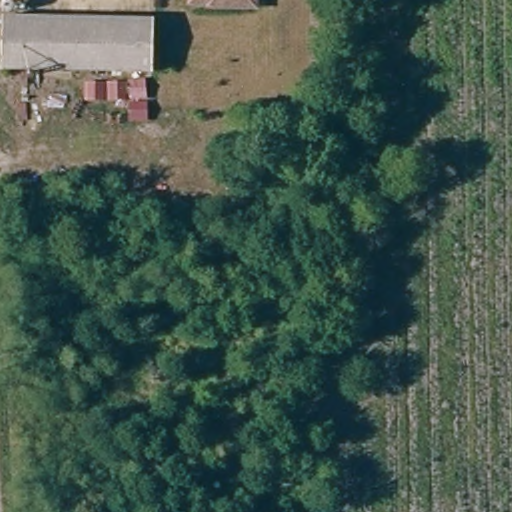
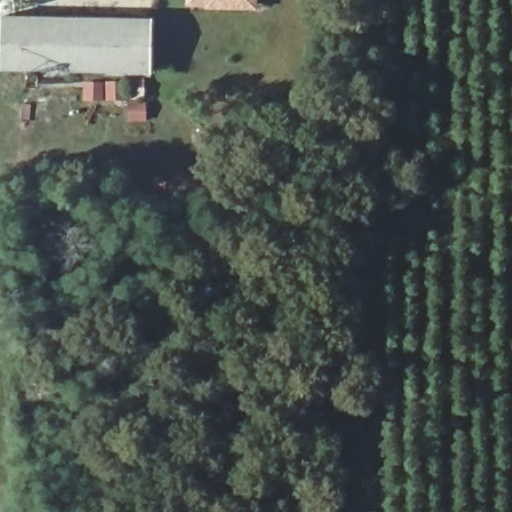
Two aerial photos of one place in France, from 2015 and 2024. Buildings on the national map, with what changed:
unchanged [(207,6),(207,0),(252,0),(252,7),(207,6)]
unchanged [(1,67),(3,20),(149,26),(147,74),(1,67)]

